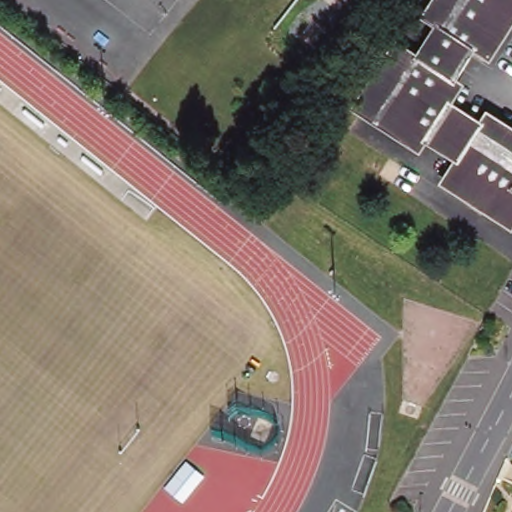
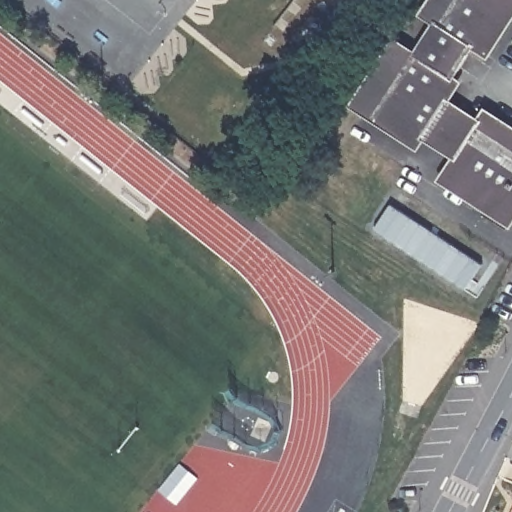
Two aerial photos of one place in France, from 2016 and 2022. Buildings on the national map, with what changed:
unchanged [(459,82),(446,101),(479,123),(486,112),(512,129),(512,221),(510,223),(442,180),(458,156),(425,134),(418,145),(354,104),(395,41),(417,55),(438,21),(424,12),(432,0),(512,0),(512,17),(488,54),(475,45),(454,79),(459,82)]
new [(391,205),(483,264),(467,290),(374,231),(391,205)]

